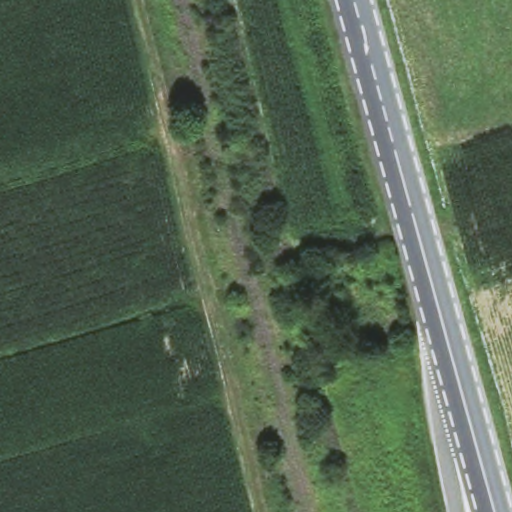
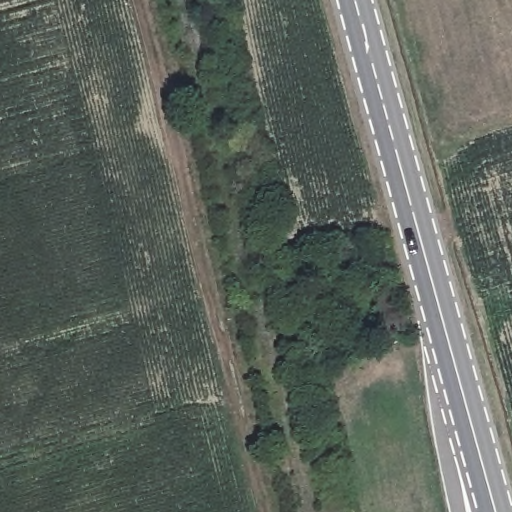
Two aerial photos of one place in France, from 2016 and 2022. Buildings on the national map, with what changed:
unchanged [(347,270),(357,296),(312,310),(302,285),(347,270)]

